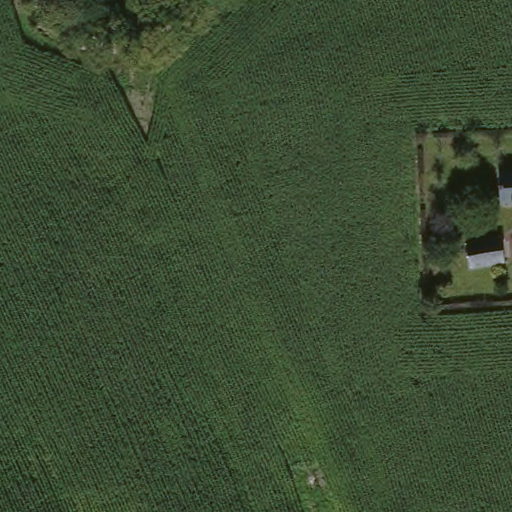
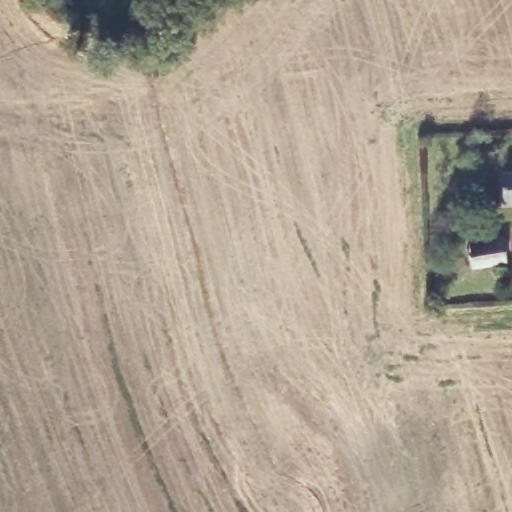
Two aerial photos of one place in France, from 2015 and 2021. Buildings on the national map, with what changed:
unchanged [(501,181),(512,179),(512,211),(504,212),(501,181)]
unchanged [(504,270),(466,277),(461,254),(498,247),(504,270)]

